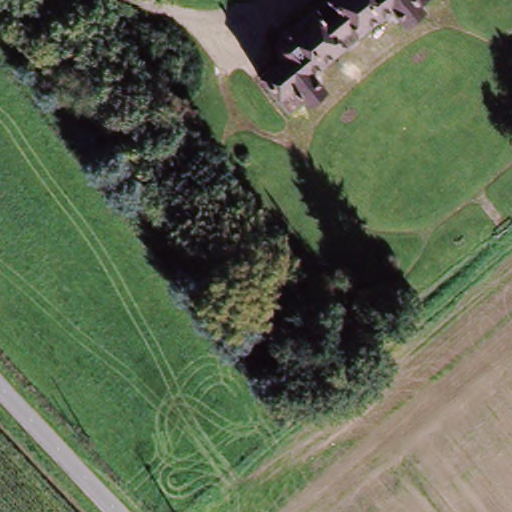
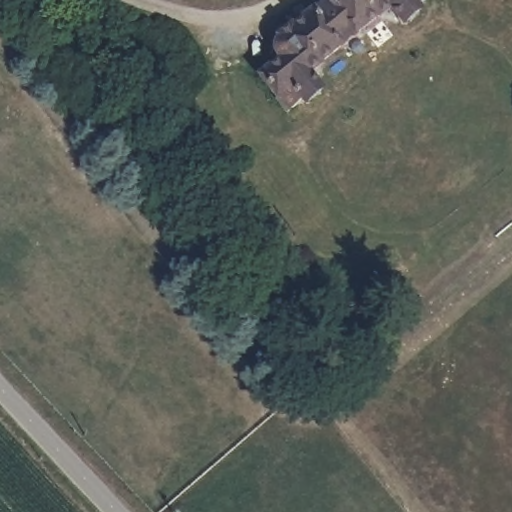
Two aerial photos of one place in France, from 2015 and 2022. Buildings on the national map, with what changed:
unchanged [(427,6),(429,10),(414,23),(398,6),(323,66),(329,75),(326,80),(331,87),(317,99),(311,91),(299,99),(271,66),(293,47),(291,33),(332,0),(434,0),(427,6)]

